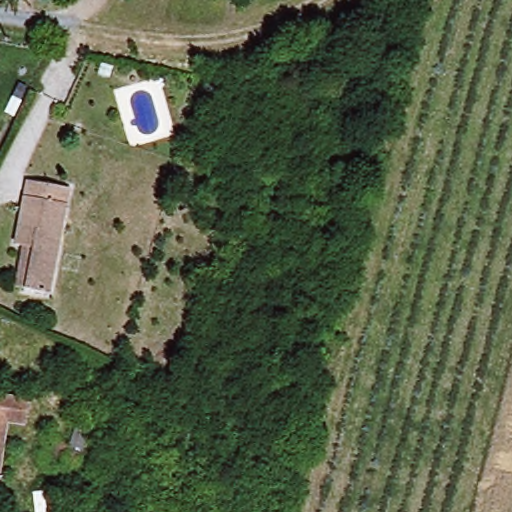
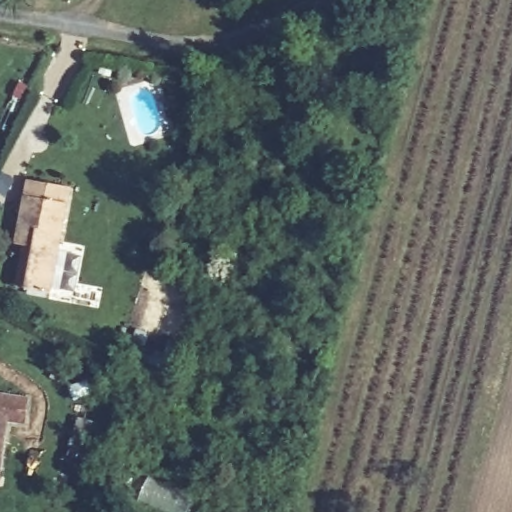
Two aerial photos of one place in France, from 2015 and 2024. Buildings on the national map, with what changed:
unchanged [(11,245),(18,181),(66,184),(54,292),(32,289),(19,287),(22,245),(11,245)]
unchanged [(20,423),(3,422),(0,448),(0,395),(24,399),(20,423)]

